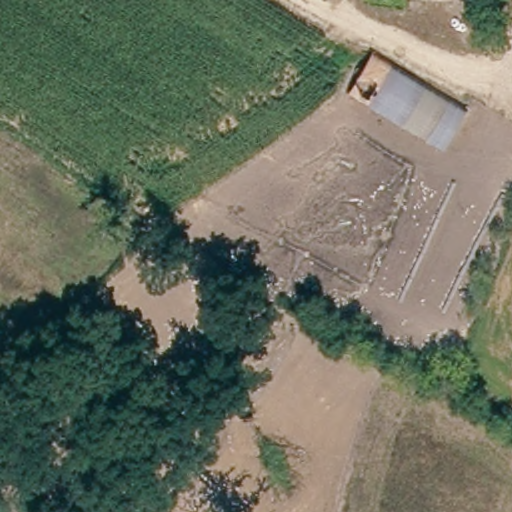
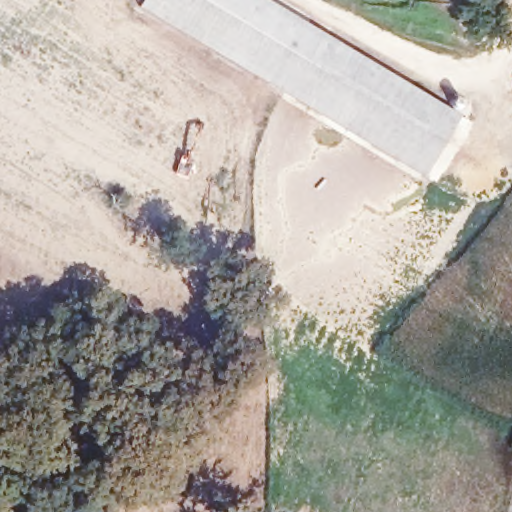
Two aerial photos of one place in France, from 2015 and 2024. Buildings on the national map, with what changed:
new [(423,178),(138,7),(143,0),(263,0),(460,116),(423,178)]

